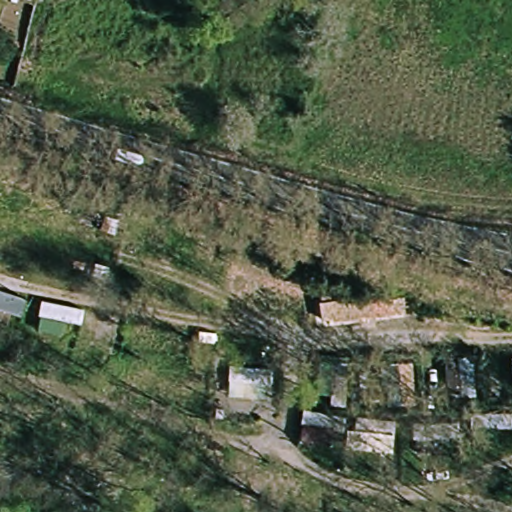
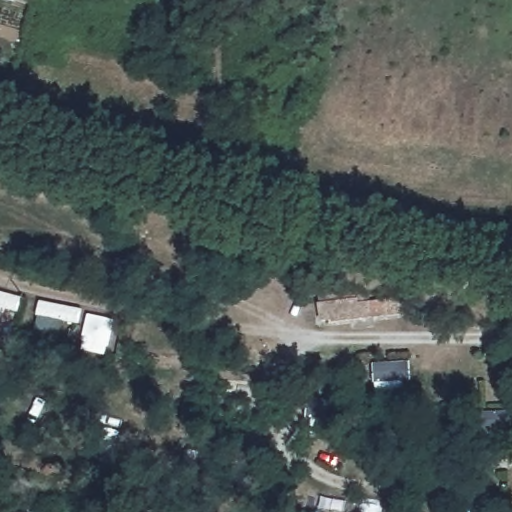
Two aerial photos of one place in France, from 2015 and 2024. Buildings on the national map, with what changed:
unchanged [(19,0),(31,0),(31,3),(19,0)]
unchanged [(332,322),(332,320),(321,321),(318,294),(402,286),(404,315),(332,322)]

